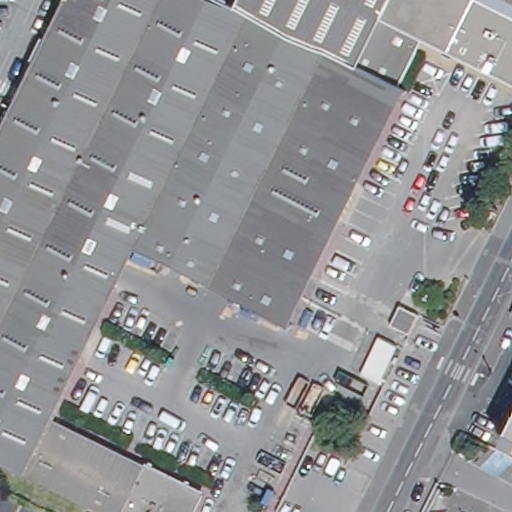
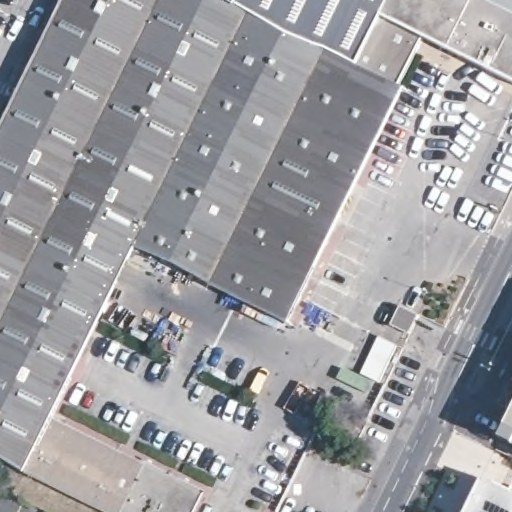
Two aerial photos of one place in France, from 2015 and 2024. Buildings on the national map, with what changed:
unchanged [(63,0),(221,0),(232,6),(235,0),(512,0),(512,79),(425,36),(399,86),(402,89),(286,321),(132,244),(46,415),(202,493),(192,512),(104,512),(0,460),(0,126),(63,0)]
unchanged [(417,316),(407,335),(388,326),(397,307),(417,316)]
unchanged [(400,344),(381,380),(365,371),(383,335),(400,344)]
unchanged [(498,423),(506,427),(512,415),(512,444),(494,434),(498,423)]
new [(512,492),(512,512),(465,512),(481,478),(512,492)]

